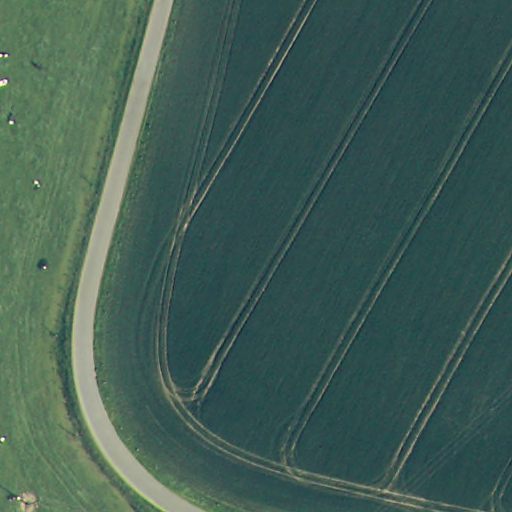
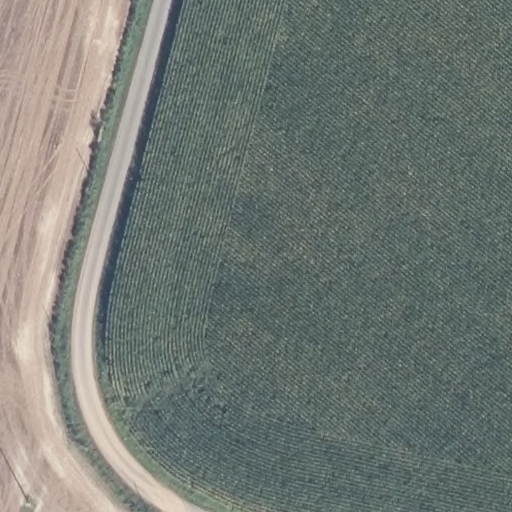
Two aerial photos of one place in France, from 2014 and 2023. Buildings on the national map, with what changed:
[]

